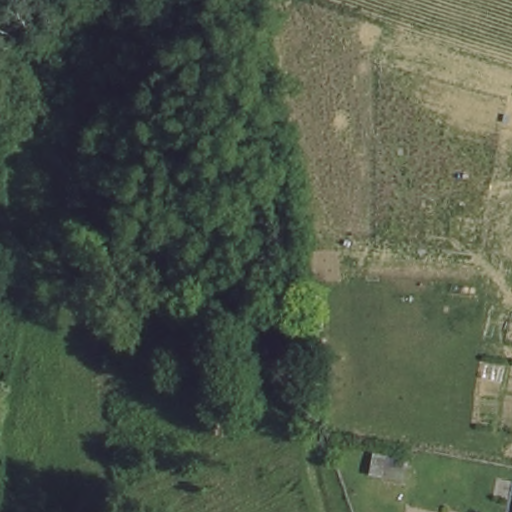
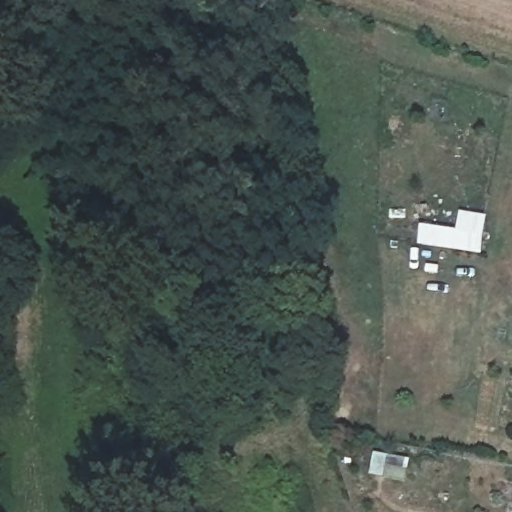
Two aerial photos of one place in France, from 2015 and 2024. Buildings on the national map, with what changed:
new [(459,211),(486,216),(479,254),(417,243),(420,225),(455,231),(459,211)]
unchanged [(408,476),(405,489),(384,484),(387,471),(408,476)]

